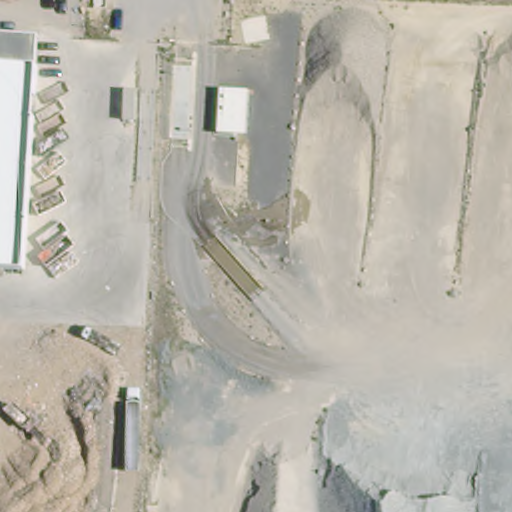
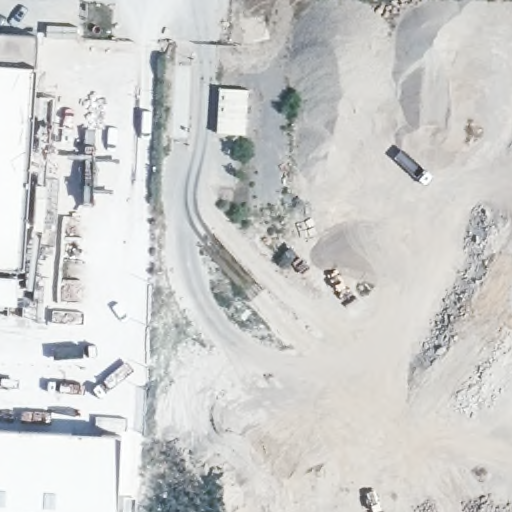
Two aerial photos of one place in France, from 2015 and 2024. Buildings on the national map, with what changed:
unchanged [(38,35),(23,269),(0,268),(0,33),(38,35)]
unchanged [(250,90),(246,135),(217,133),(219,89),(250,90)]
new [(118,512),(0,512),(0,430),(120,436),(118,512)]

